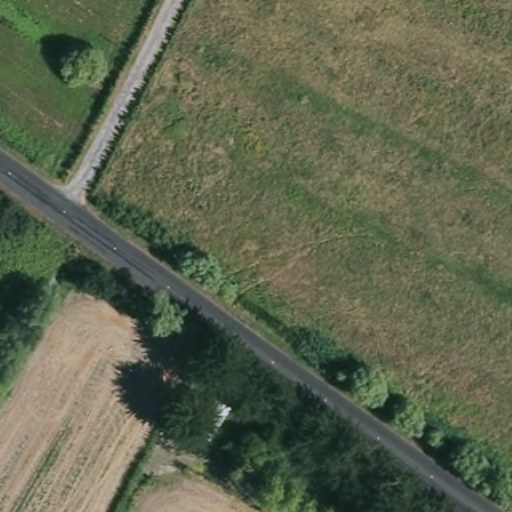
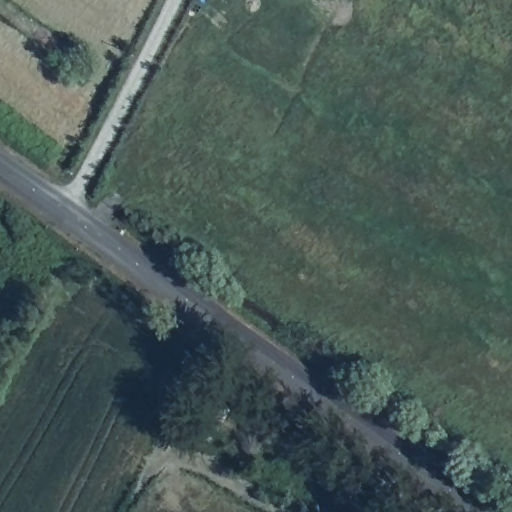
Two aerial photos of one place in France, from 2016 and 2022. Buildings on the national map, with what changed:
unchanged [(229,405),(210,437),(196,428),(215,395),(229,405)]

